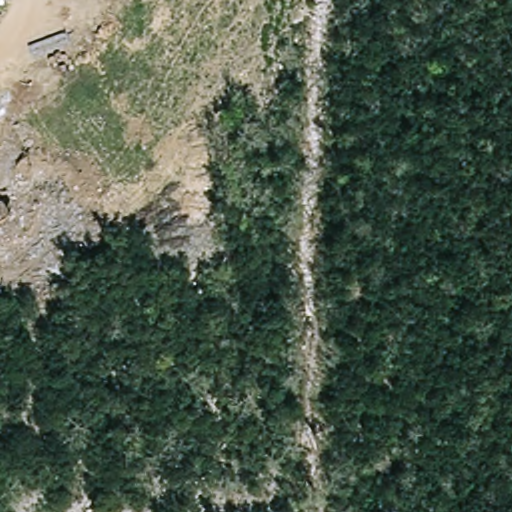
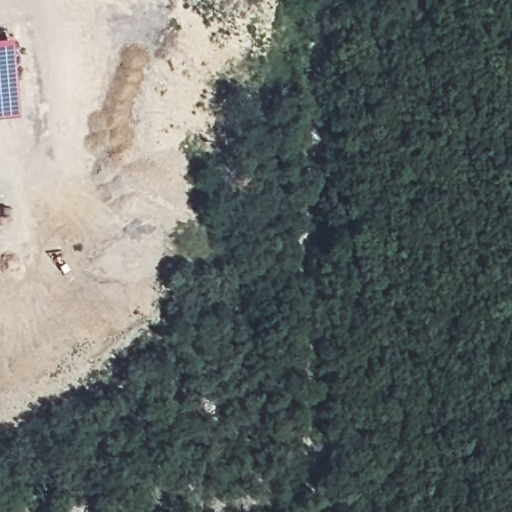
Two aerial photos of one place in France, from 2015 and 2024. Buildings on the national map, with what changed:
demolished [(6,0),(6,13),(0,13),(0,0),(6,0)]
new [(2,26),(3,34),(8,33),(18,114),(0,116),(0,26),(2,26)]

